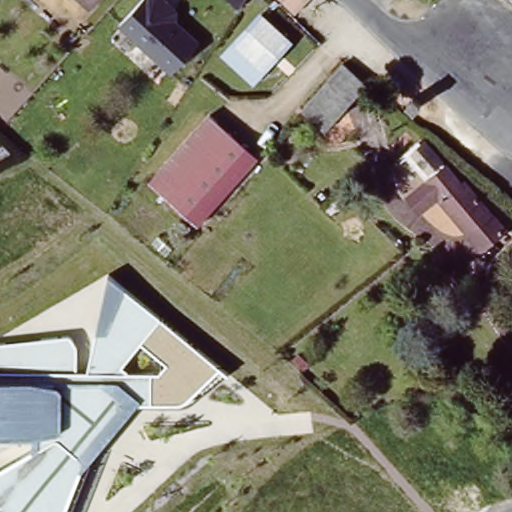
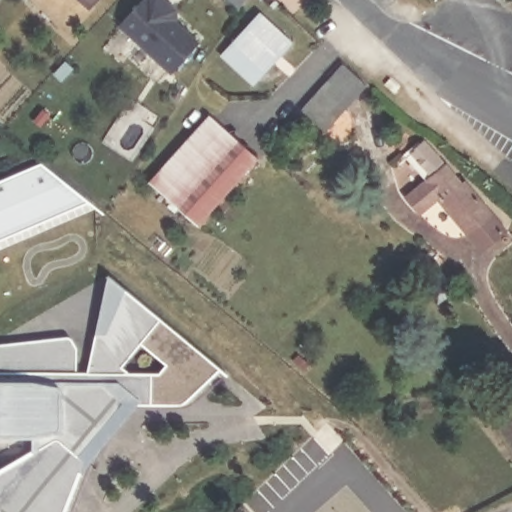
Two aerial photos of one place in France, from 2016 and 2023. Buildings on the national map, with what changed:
unchanged [(91,4),(86,0),(97,0),(93,5),(91,4)]
unchanged [(132,31),(118,20),(134,0),(159,0),(159,2),(160,0),(164,0),(167,1),(167,8),(165,11),(191,34),(168,61),(133,33),(132,31)]
unchanged [(277,0),(305,0),(312,6),(298,21),(277,0)]
unchanged [(222,60),(230,49),(237,43),(258,19),(286,44),(257,74),(248,84),(222,60)]
unchanged [(324,130),(302,110),(343,65),(365,85),(324,130)]
demolished [(415,99),(408,105),(402,99),(408,92),(415,99)]
unchanged [(257,163),(197,230),(149,187),(208,120),(257,163)]
unchanged [(476,252),(467,238),(437,203),(419,218),(407,204),(427,187),(407,163),(425,148),(460,189),(463,187),(505,237),(485,253),(480,257),(476,252)]
new [(89,200),(0,240),(0,182),(43,164),(89,200)]
unchanged [(32,435),(0,435),(0,342),(67,334),(72,337),(75,340),(77,346),(77,369),(90,369),(109,276),(220,368),(188,401),(185,403),(180,403),(138,404),(82,471),(70,505),(68,512),(0,512),(0,468),(32,449),(32,435)]
unchanged [(304,359),(299,364),(288,354),(293,349),(304,359)]

